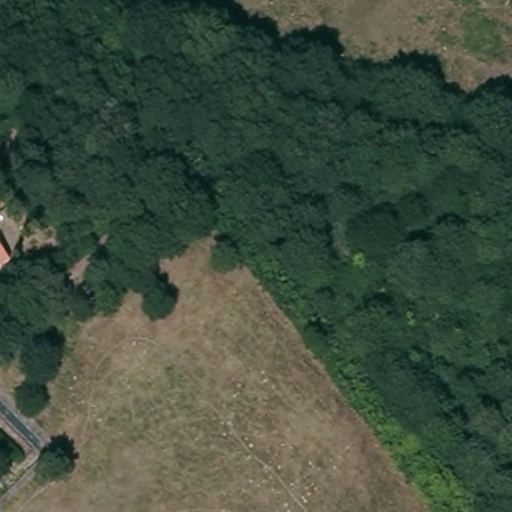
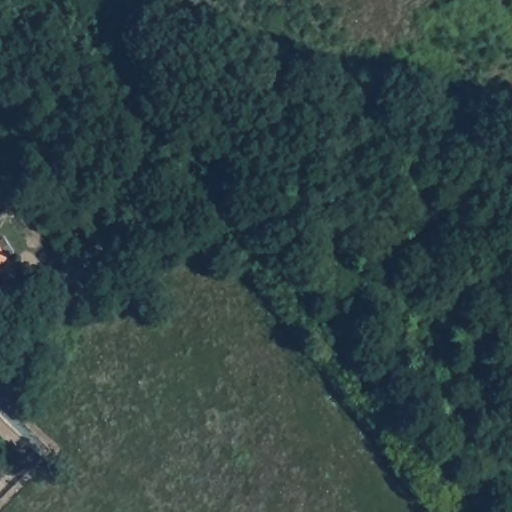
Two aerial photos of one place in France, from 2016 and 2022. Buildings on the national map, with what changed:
unchanged [(0,260),(0,248),(6,256),(0,260)]

